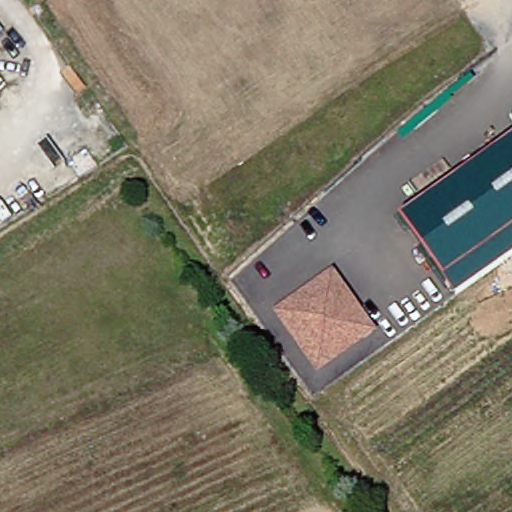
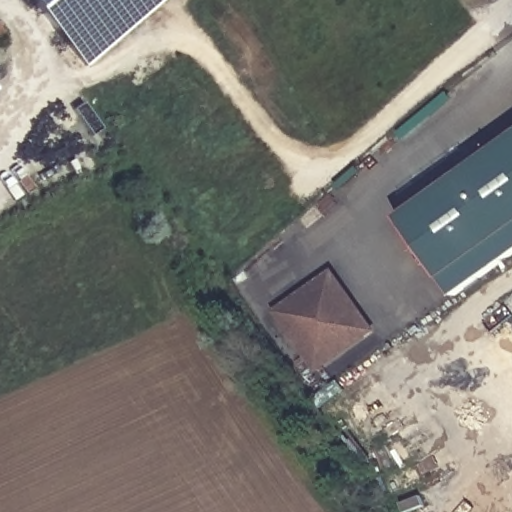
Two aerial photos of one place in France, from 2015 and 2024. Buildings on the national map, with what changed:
new [(85,65),(30,0),(161,0),(85,65)]
unchanged [(397,221),(512,137),(512,256),(453,299),(397,221)]
unchanged [(315,369),(274,312),(312,284),(329,272),(344,292),(370,329),(315,369)]

